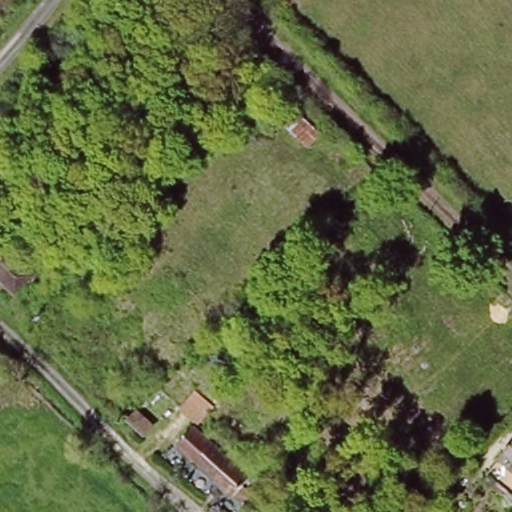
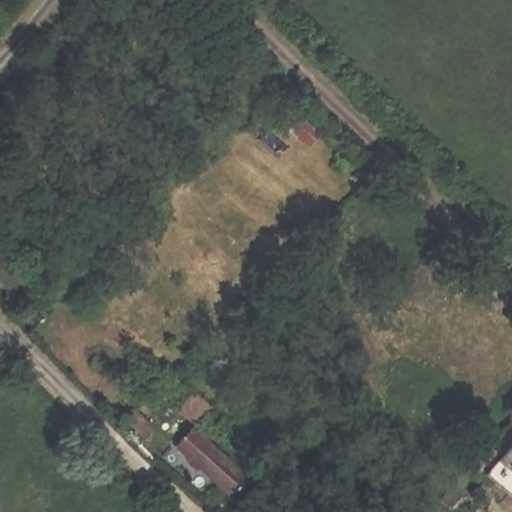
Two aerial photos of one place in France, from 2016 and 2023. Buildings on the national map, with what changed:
unchanged [(327,131),(313,147),(288,127),(304,110),(327,131)]
unchanged [(32,273),(15,289),(0,276),(0,245),(2,244),(32,273)]
unchanged [(183,449),(202,429),(265,488),(247,507),(183,449)]
unchanged [(494,466),(512,446),(512,483),(494,466)]

